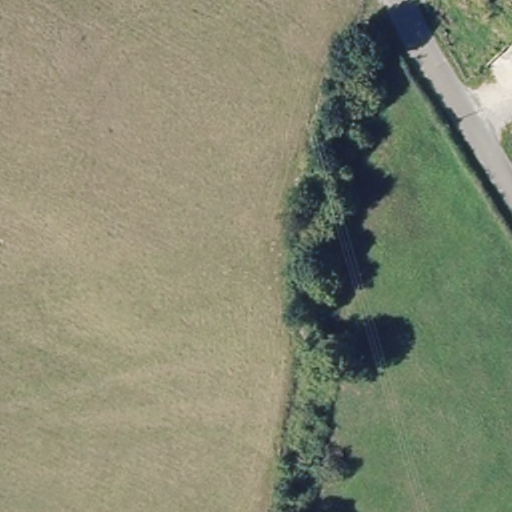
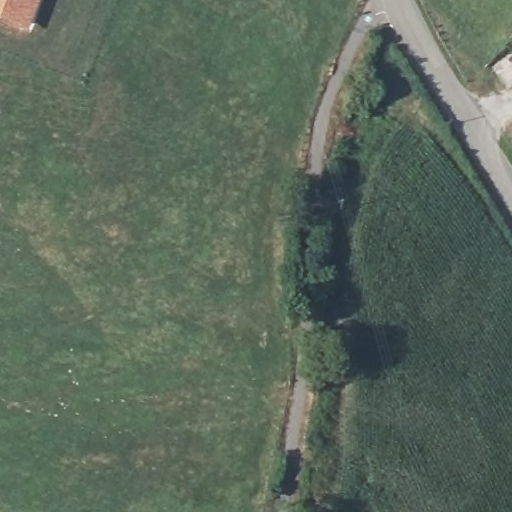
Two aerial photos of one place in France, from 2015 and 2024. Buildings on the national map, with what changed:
new [(28,34),(0,24),(0,0),(42,0),(28,34)]

